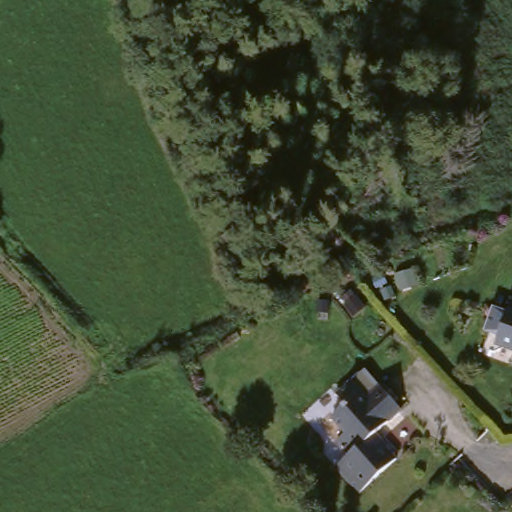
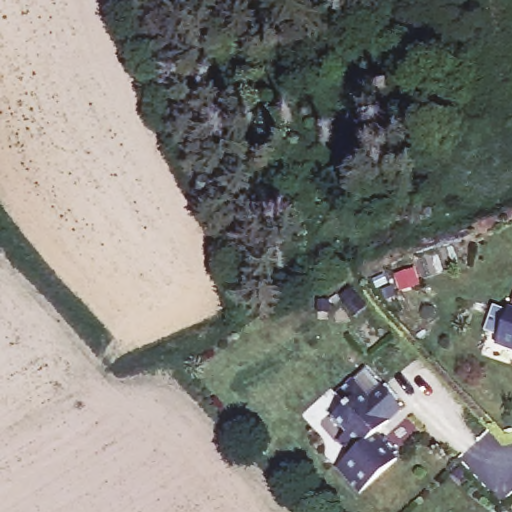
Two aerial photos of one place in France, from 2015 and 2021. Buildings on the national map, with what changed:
unchanged [(481,341),(491,310),(512,317),(512,352),(481,341)]
unchanged [(341,421),(326,405),(338,394),(328,383),(347,365),(363,382),(376,371),(399,396),(367,425),(373,432),(381,425),(394,438),(389,442),(394,446),(355,481),(333,457),(347,443),(333,429),(341,421)]

